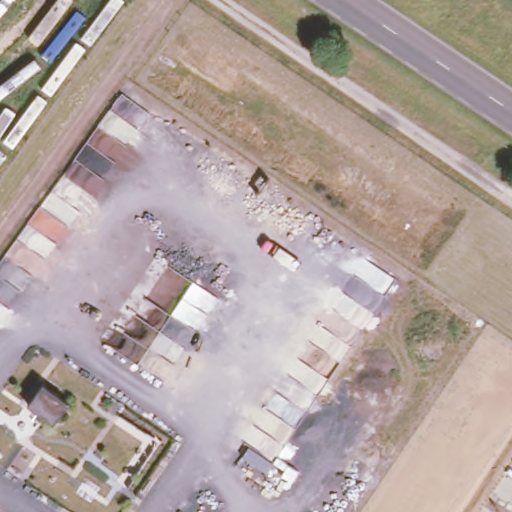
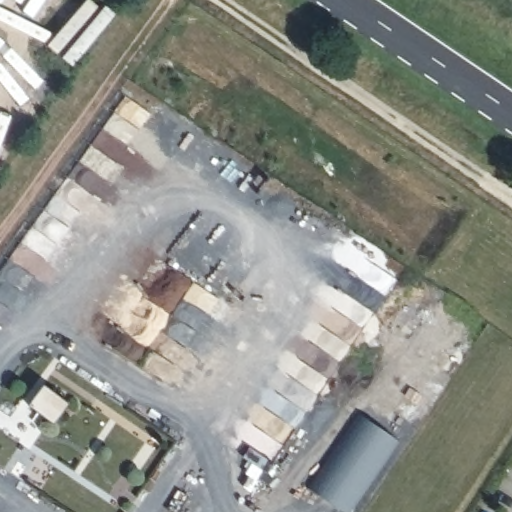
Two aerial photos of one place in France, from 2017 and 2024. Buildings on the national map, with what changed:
unchanged [(54,422),(29,404),(43,384),(68,402),(54,422)]
new [(351,512),(347,512),(309,486),(359,412),(400,440),(351,512)]

